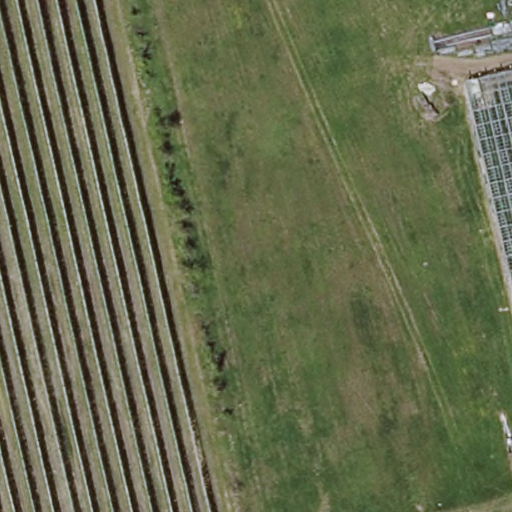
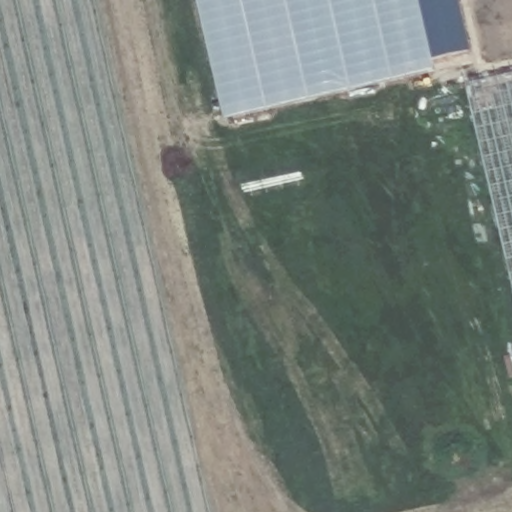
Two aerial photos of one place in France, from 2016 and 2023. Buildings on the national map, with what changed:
new [(224,120),(196,0),(459,0),(470,52),(428,59),(431,70),(224,120)]
unchanged [(512,72),(512,288),(466,82),(512,72)]

